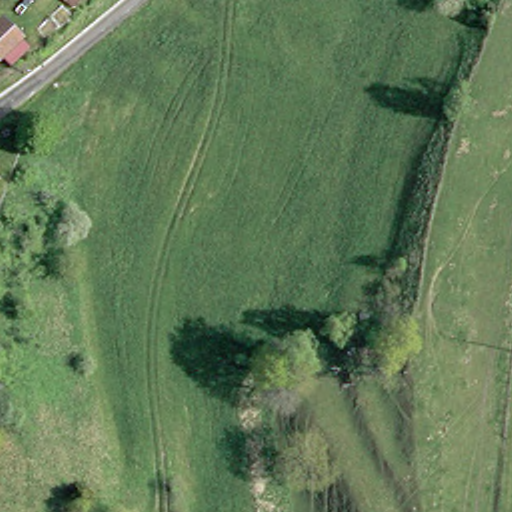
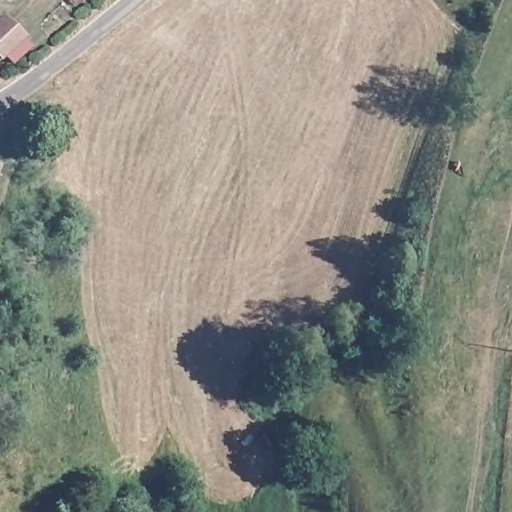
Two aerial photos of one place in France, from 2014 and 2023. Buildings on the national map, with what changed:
unchanged [(0,59),(0,12),(3,9),(26,33),(3,62),(0,59)]

